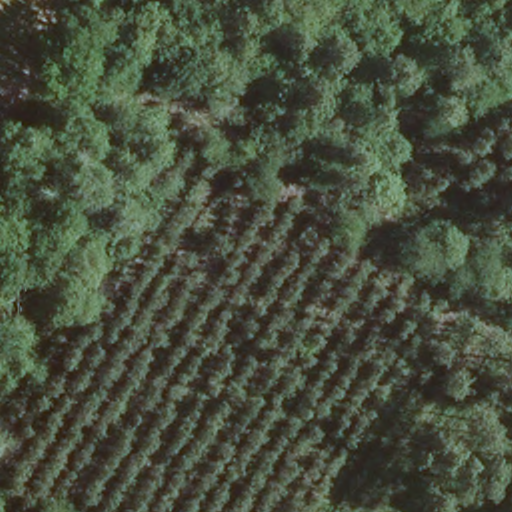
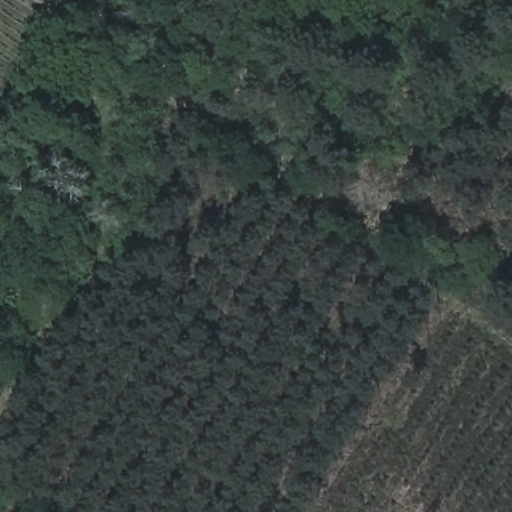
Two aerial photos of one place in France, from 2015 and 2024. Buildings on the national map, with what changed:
[]

